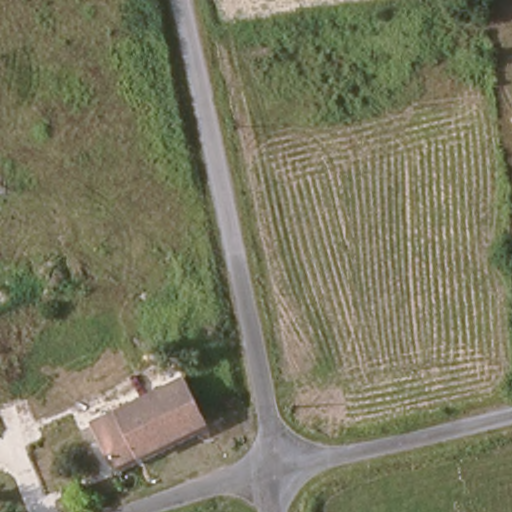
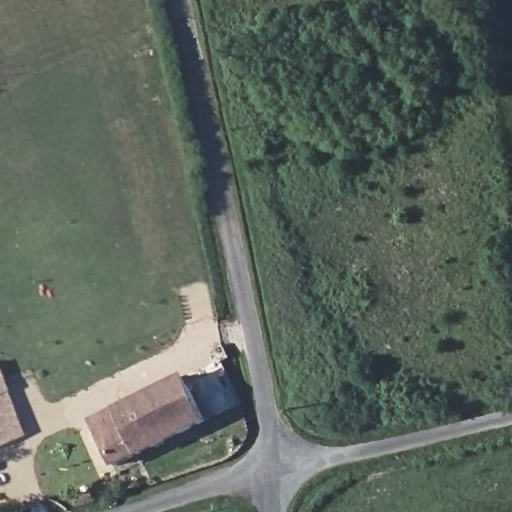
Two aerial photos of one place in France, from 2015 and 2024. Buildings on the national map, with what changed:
new [(0,443),(0,377),(21,435),(0,443)]
unchanged [(121,464),(100,419),(191,377),(212,421),(121,464)]

